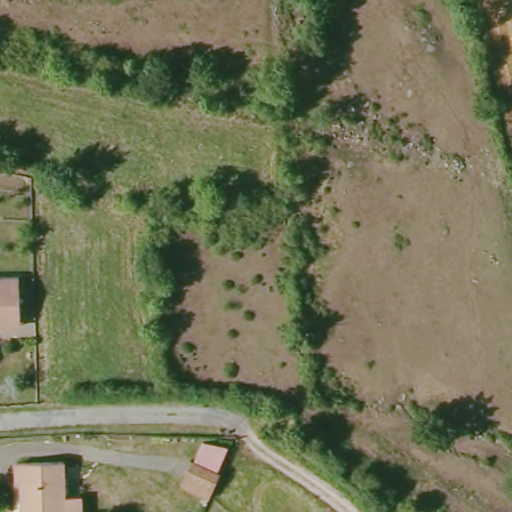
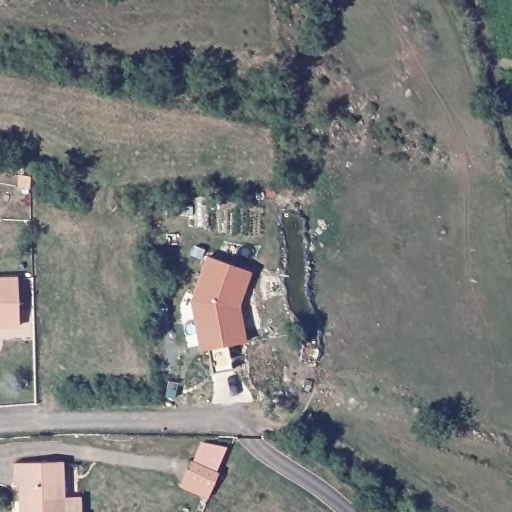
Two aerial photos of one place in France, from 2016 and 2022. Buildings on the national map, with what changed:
new [(240,304),(245,341),(199,351),(190,302),(207,256),(252,272),(240,304)]
unchanged [(0,283),(19,282),(22,332),(0,333),(0,283)]
new [(227,447),(217,472),(219,473),(209,497),(180,486),(202,441),(227,447)]
demolished [(222,485),(222,487),(191,469),(200,450),(232,468),(222,485)]
unchanged [(31,489),(21,489),(22,466),(68,463),(72,512),(33,512),(31,489)]

